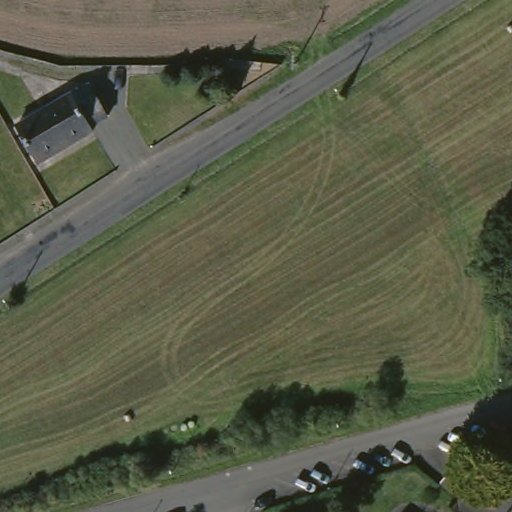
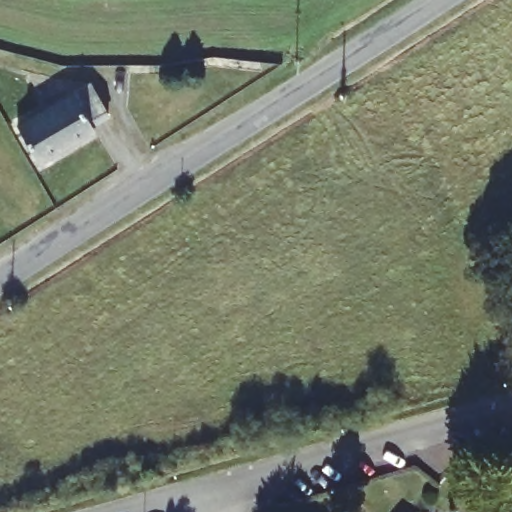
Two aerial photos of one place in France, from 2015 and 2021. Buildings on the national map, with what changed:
unchanged [(110,118),(94,129),(96,132),(42,168),(20,134),(89,87),(110,118)]

